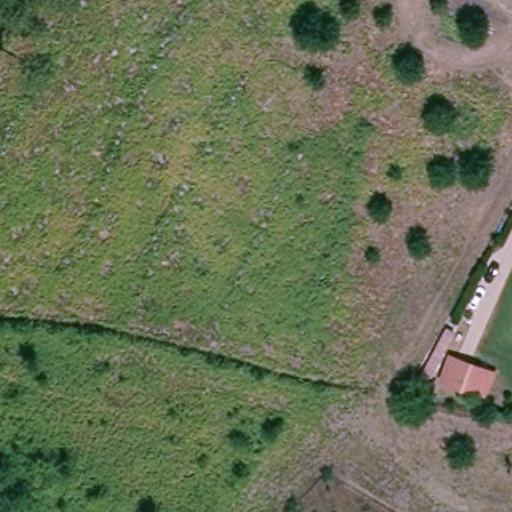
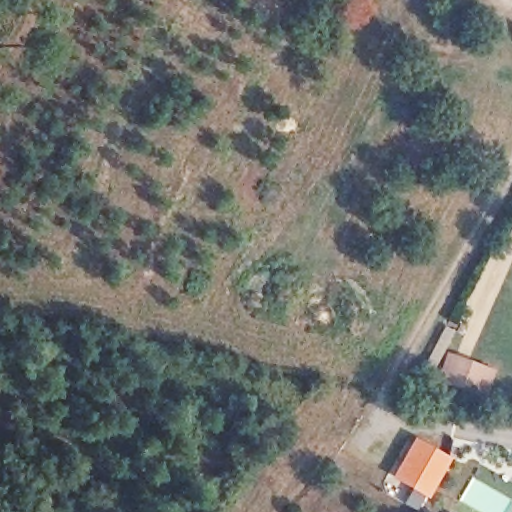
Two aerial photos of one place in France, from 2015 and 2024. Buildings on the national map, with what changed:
unchanged [(447,379),(460,357),(489,373),(477,396),(447,379)]
new [(415,435),(453,458),(429,498),(417,511),(402,502),(410,487),(392,476),(415,435)]

